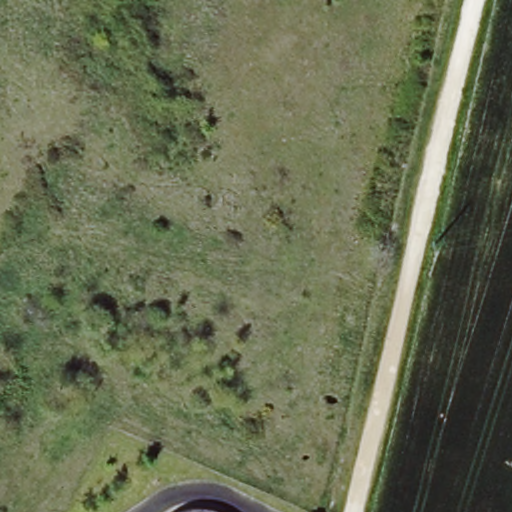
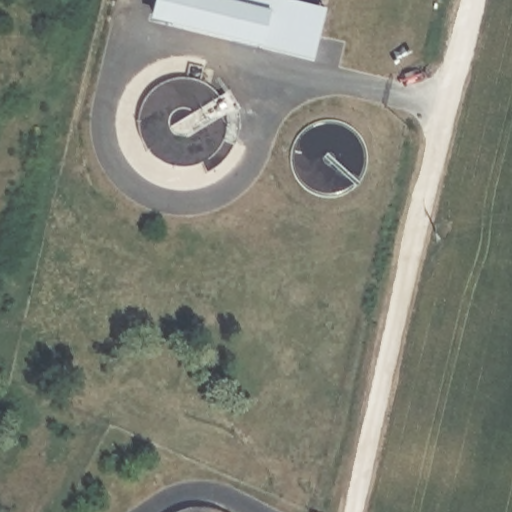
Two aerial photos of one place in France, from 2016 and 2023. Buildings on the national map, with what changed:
new [(262,47),(261,51),(149,22),(154,0),(284,0),(327,10),(315,61),(262,47)]

